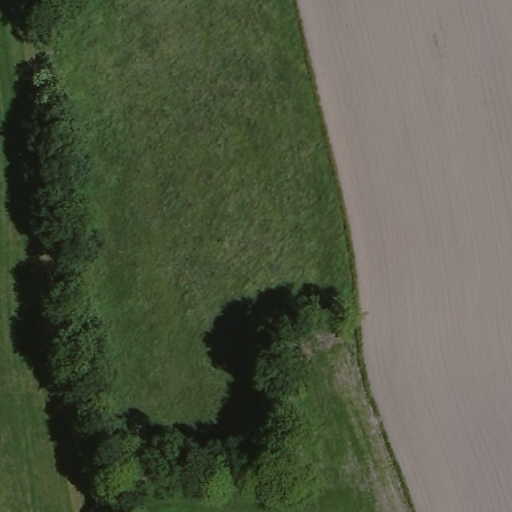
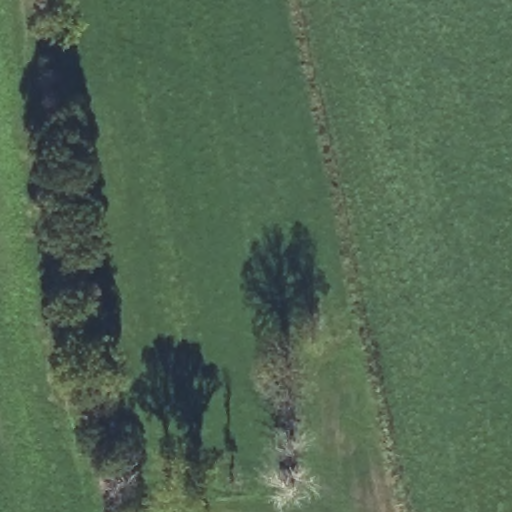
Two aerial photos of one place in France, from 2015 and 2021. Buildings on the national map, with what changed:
[]

